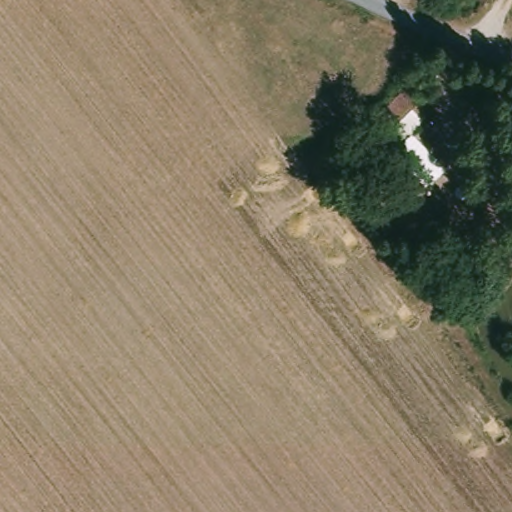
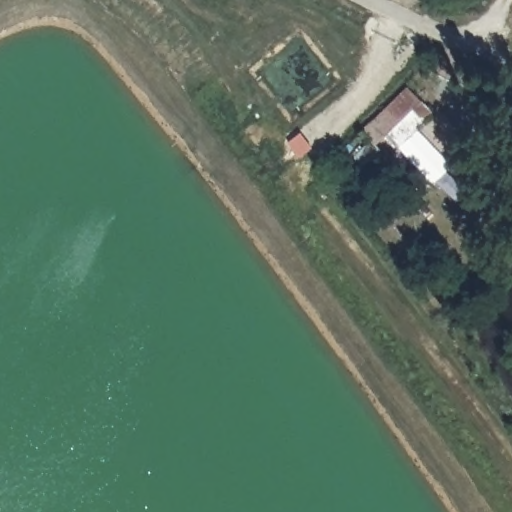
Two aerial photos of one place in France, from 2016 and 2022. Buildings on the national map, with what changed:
unchanged [(371,129),(402,91),(429,116),(394,147),(371,129)]

